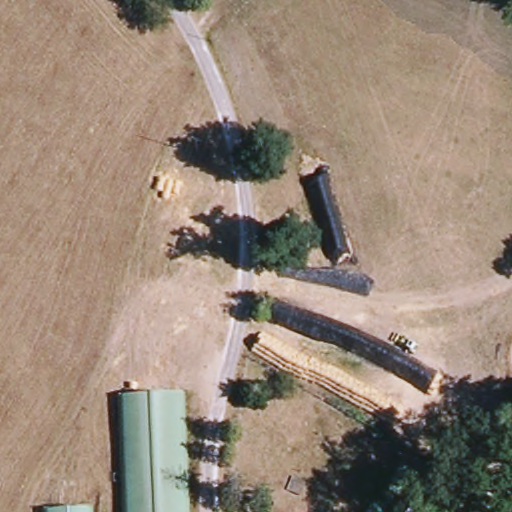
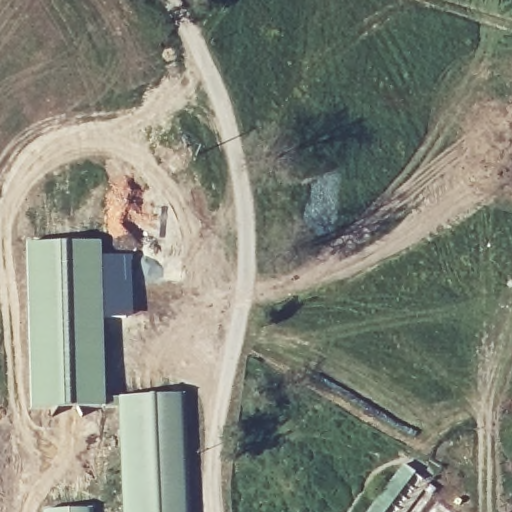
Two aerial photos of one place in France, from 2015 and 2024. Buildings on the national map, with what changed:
new [(25,245),(100,243),(104,398),(124,397),(124,407),(29,410),(25,245)]
unchanged [(128,512),(124,397),(183,394),(189,512),(128,512)]
unchanged [(439,482),(415,512),(369,512),(410,460),(439,482)]
unchanged [(92,508),(92,512),(49,512),(49,510),(92,508)]

